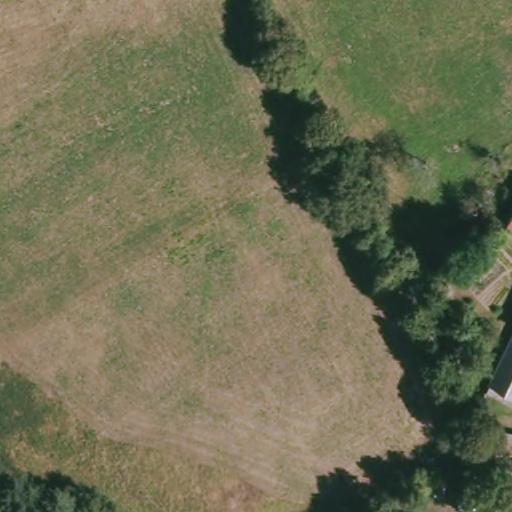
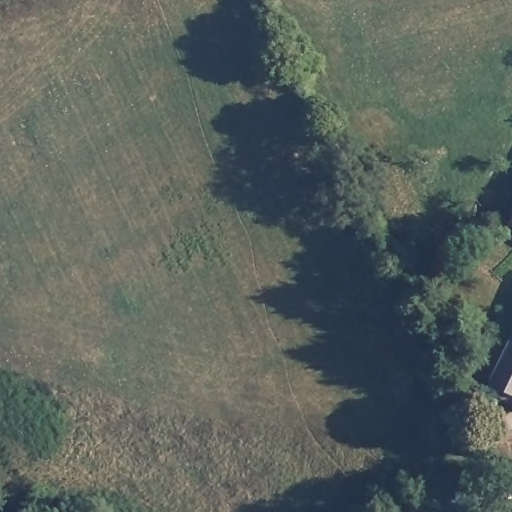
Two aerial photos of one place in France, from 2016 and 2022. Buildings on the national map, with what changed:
unchanged [(512,203),(512,222),(501,215),(512,203)]
unchanged [(492,370),(512,325),(512,381),(492,370)]
unchanged [(512,440),(512,460),(487,452),(492,433),(512,440)]

